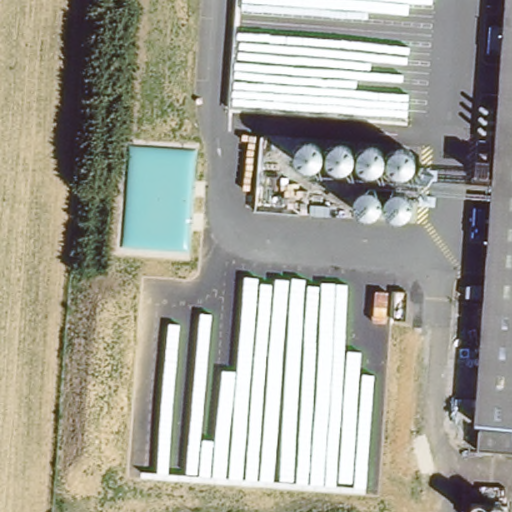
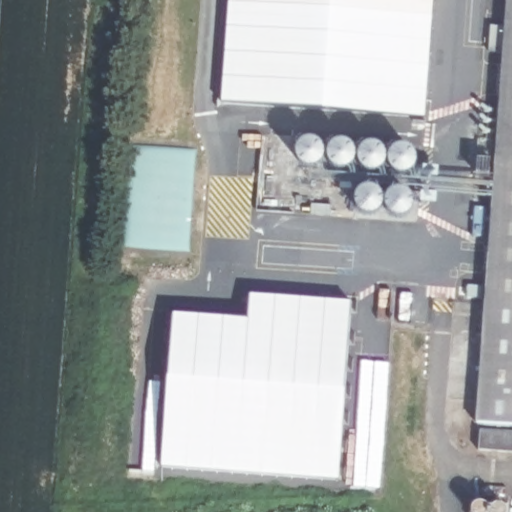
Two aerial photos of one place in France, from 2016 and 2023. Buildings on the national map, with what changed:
demolished [(285,0),(437,0),(427,140),(319,132),(277,129),(285,0)]
unchanged [(508,0),(512,0),(512,427),(479,425),(508,0)]
unchanged [(276,166),(270,163),(266,157),(266,150),(269,144),(274,140),(282,140),(288,143),(292,149),(292,157),(289,161),(285,165),(279,166),(276,166)]
unchanged [(301,210),(297,207),(293,202),(293,194),(297,188),(303,185),(309,185),(314,187),(318,192),(319,197),(318,204),(314,209),(306,211),(301,210)]
unchanged [(331,212),(327,208),(324,201),(326,194),(330,189),(336,187),(343,188),(348,191),(351,199),(350,206),(344,212),(338,213),(331,212)]
unchanged [(426,218),(421,214),(419,207),(421,199),(428,194),(431,193),(438,194),(443,198),(446,206),(445,212),(439,218),(433,220),(426,218)]

